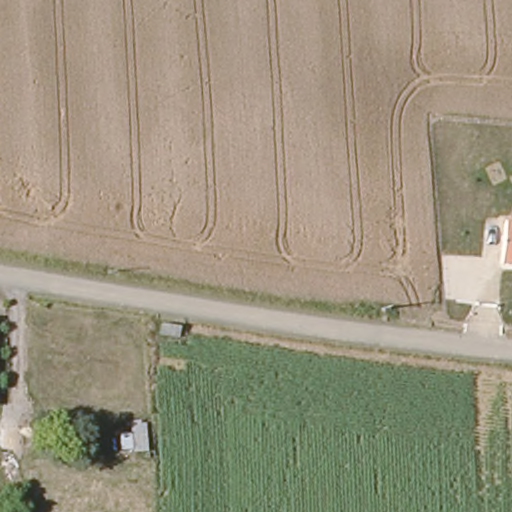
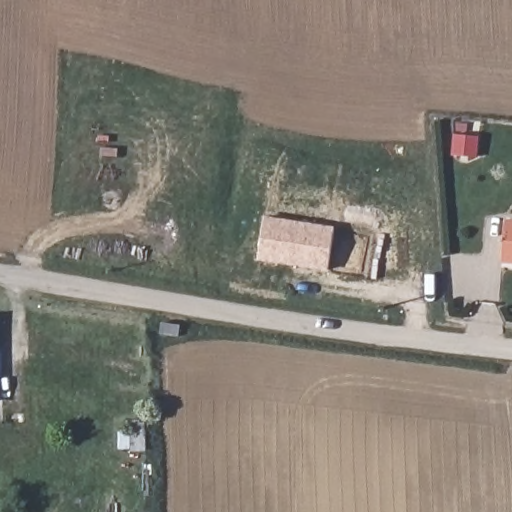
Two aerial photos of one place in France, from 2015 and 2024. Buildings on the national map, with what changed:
new [(264,217),(334,228),(328,271),(258,260),(264,217)]
unchanged [(505,221),(512,222),(512,264),(501,263),(505,221)]

